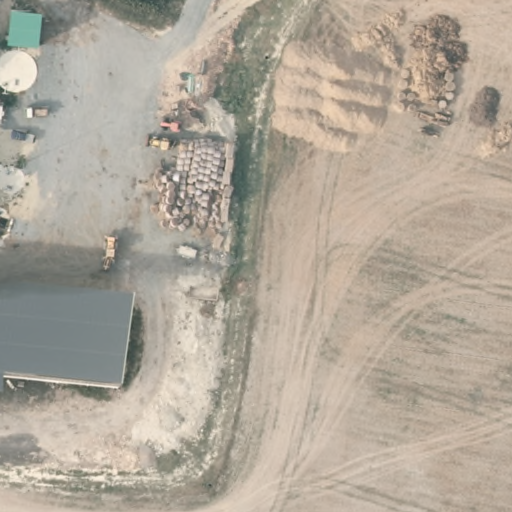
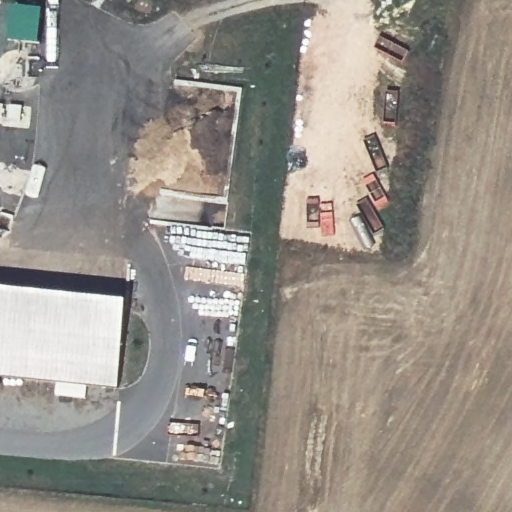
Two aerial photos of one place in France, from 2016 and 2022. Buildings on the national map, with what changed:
unchanged [(116,391),(0,380),(0,291),(127,304),(116,391)]

